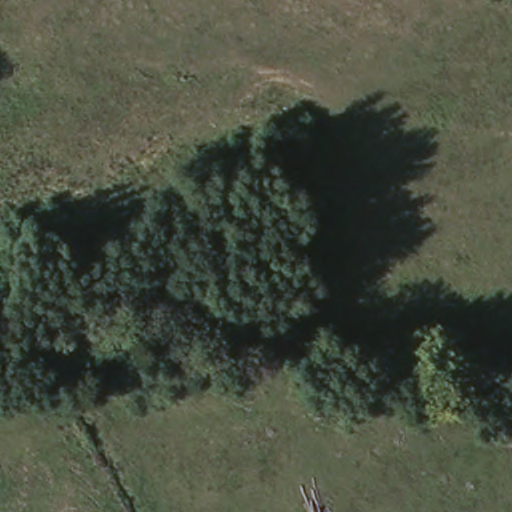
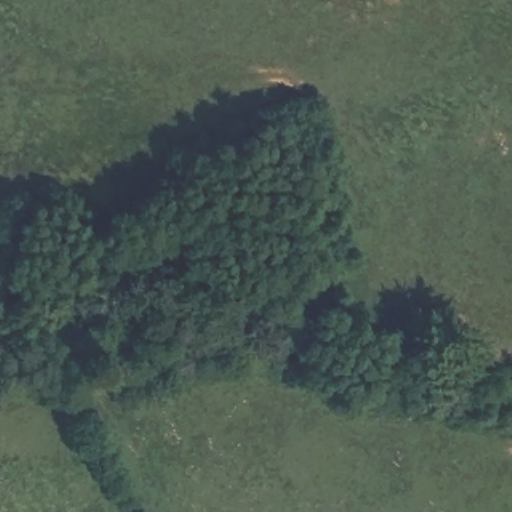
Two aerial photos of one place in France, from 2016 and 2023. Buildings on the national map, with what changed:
[]

